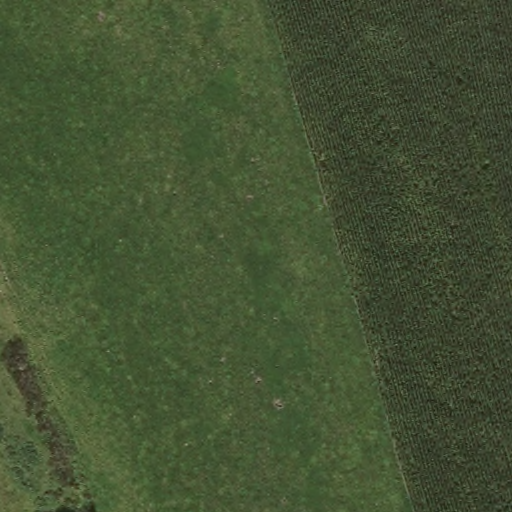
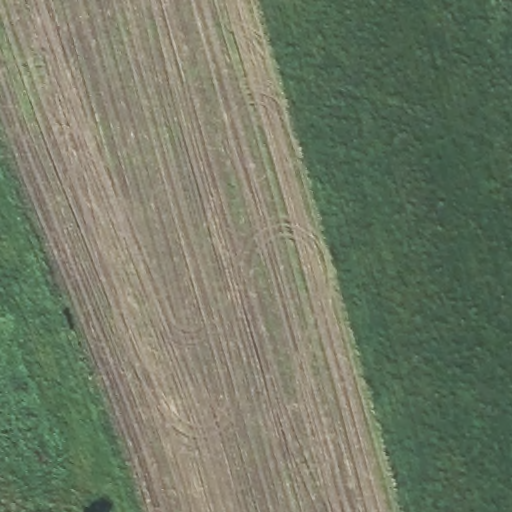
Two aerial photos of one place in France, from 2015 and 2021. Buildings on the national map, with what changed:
[]

